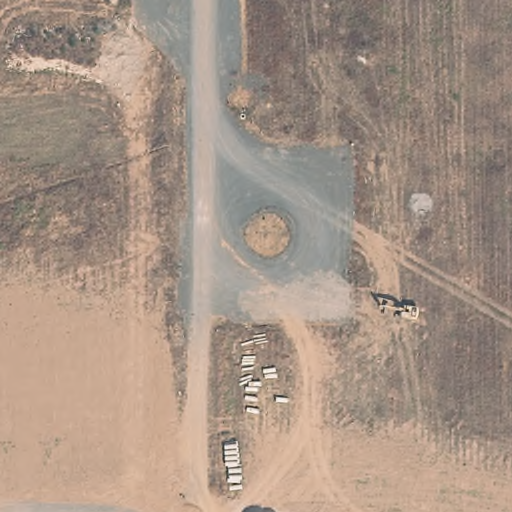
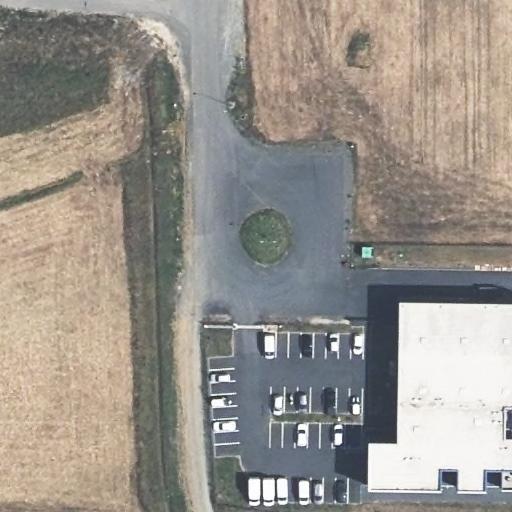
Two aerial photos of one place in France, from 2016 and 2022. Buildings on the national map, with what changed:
new [(394,437),(397,295),(512,298),(512,486),(501,486),(503,464),(484,464),(484,485),(456,485),(456,464),(438,463),(439,483),(364,483),(366,437),(394,437)]

